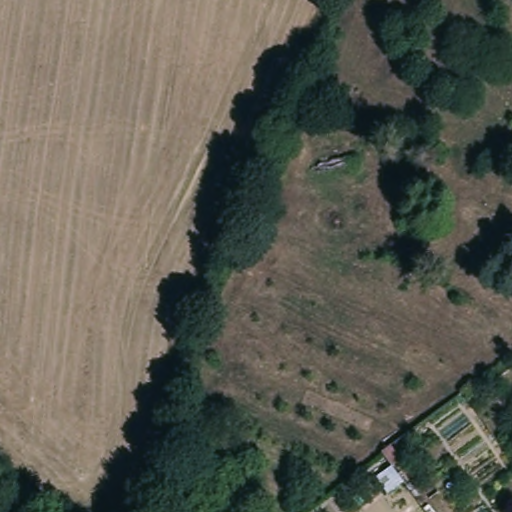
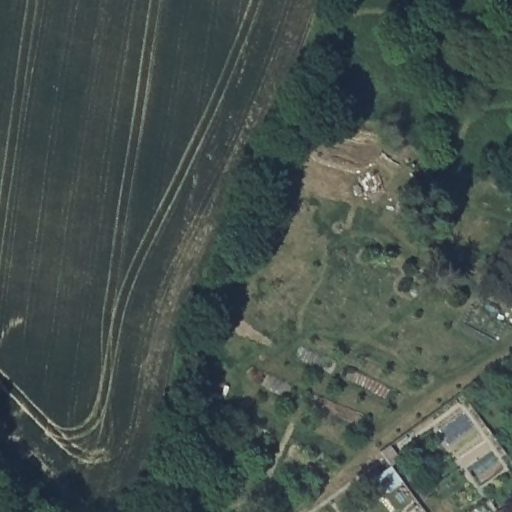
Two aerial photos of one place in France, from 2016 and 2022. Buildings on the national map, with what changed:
[]

